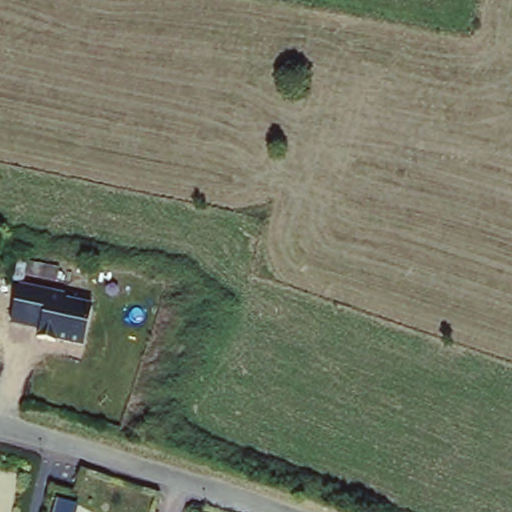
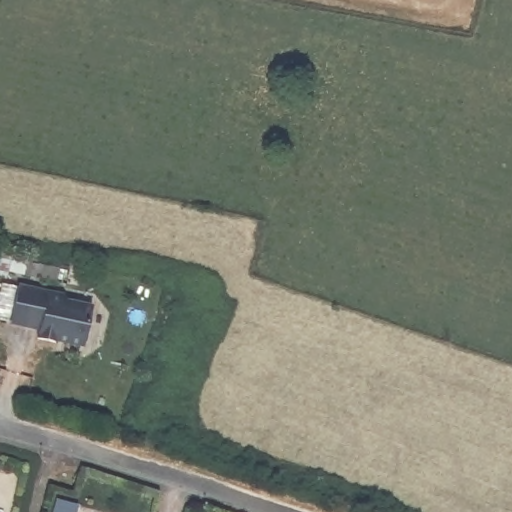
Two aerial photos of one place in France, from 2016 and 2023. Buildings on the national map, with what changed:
unchanged [(65,288),(63,294),(91,300),(84,343),(37,335),(37,329),(7,322),(16,282),(65,288)]

